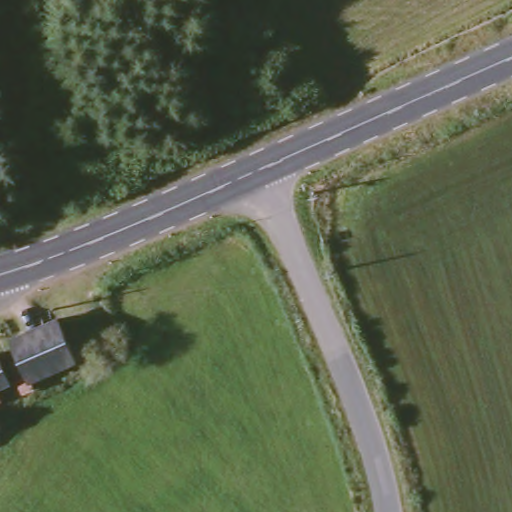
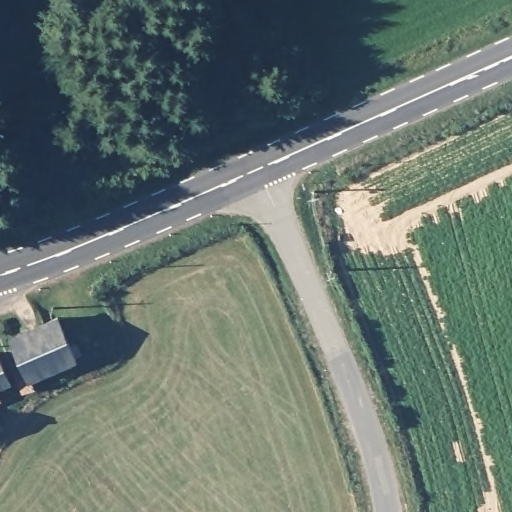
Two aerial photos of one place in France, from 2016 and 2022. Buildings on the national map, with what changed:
unchanged [(70,354),(27,375),(29,380),(20,384),(9,358),(16,354),(8,336),(52,313),(70,354)]
unchanged [(2,375),(0,376),(0,371),(2,375)]

